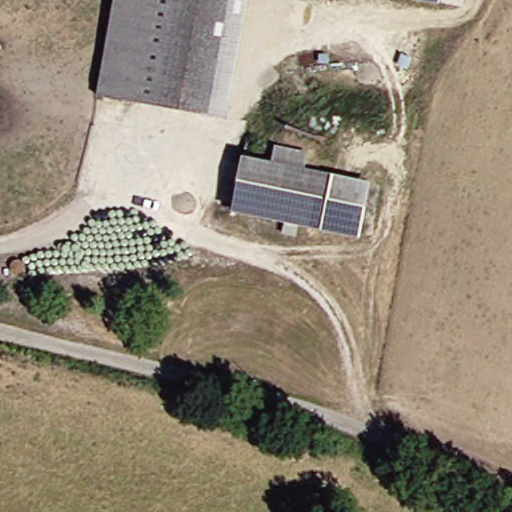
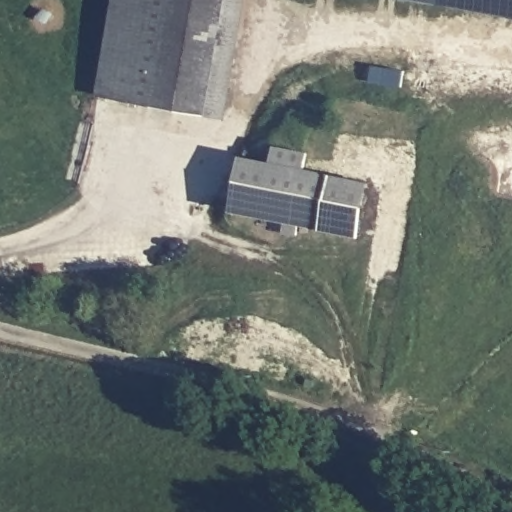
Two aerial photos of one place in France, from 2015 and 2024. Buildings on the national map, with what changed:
unchanged [(148,95),(91,81),(109,0),(168,0),(148,95)]
unchanged [(201,108),(148,95),(168,0),(225,0),(201,108)]
unchanged [(236,0),(250,0),(228,114),(216,111),(236,0)]
unchanged [(438,4),(416,0),(439,0),(438,4)]
new [(438,4),(439,0),(512,0),(512,17),(438,4)]
unchanged [(358,232),(234,199),(248,146),(373,179),(358,232)]

